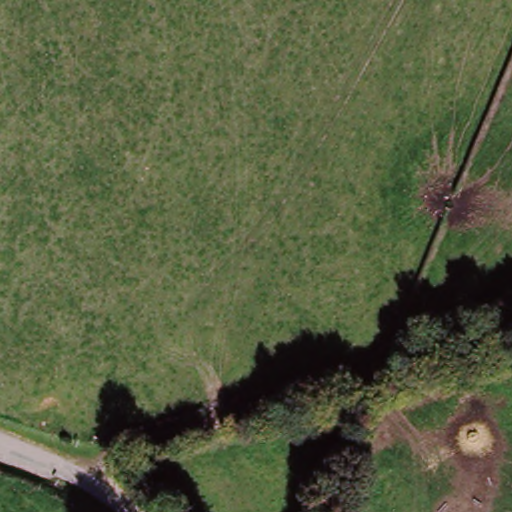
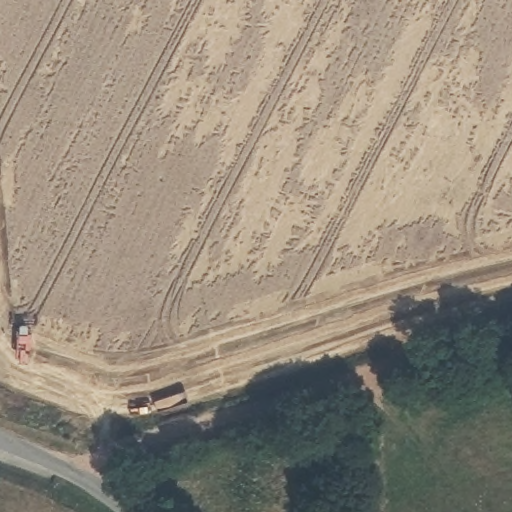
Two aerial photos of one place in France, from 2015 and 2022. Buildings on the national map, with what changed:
[]

